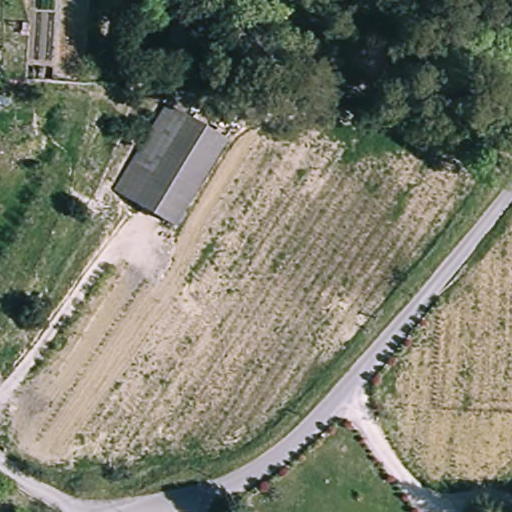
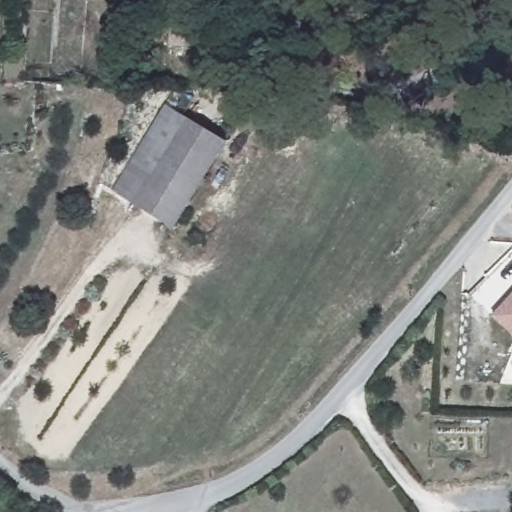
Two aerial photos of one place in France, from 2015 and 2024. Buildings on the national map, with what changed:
unchanged [(115,190),(166,104),(225,140),(176,228),(115,190)]
new [(512,293),(512,333),(492,315),(512,293)]

